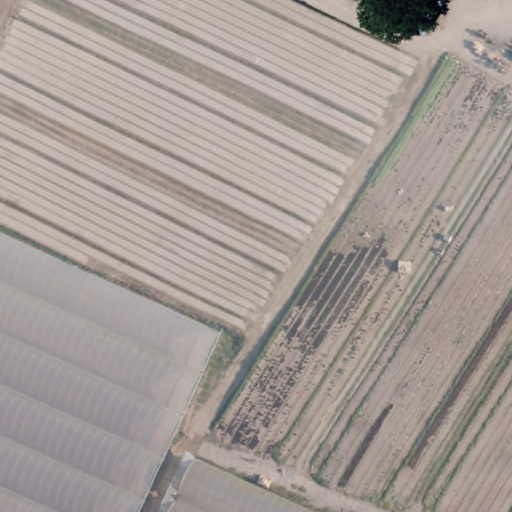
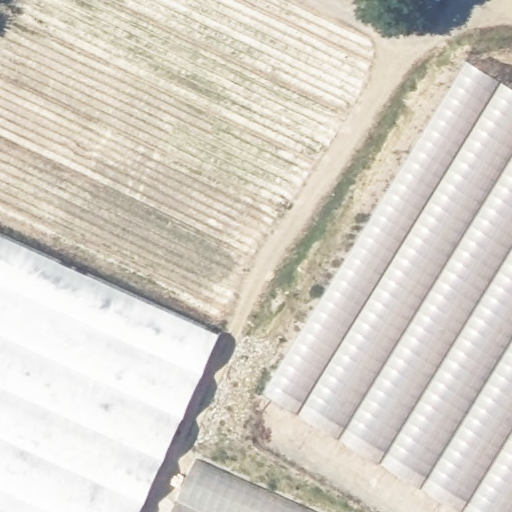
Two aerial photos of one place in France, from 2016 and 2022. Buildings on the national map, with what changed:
unchanged [(426,30),(402,18),(410,0),(442,0),(426,30)]
new [(467,59),(512,87),(512,512),(465,512),(265,389),(467,59)]
unchanged [(138,512),(0,512),(0,235),(217,333),(138,512)]
unchanged [(172,512),(192,464),(297,512),(172,512)]

